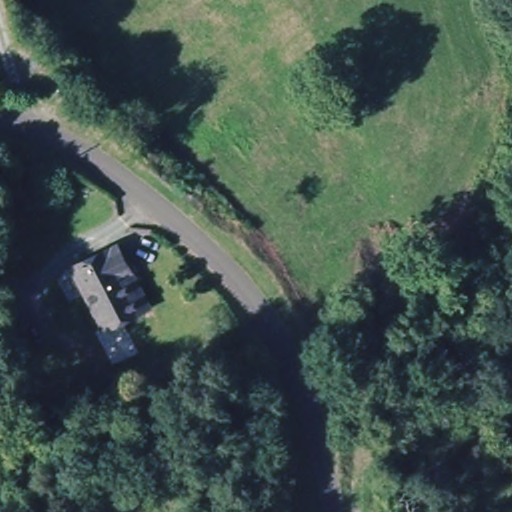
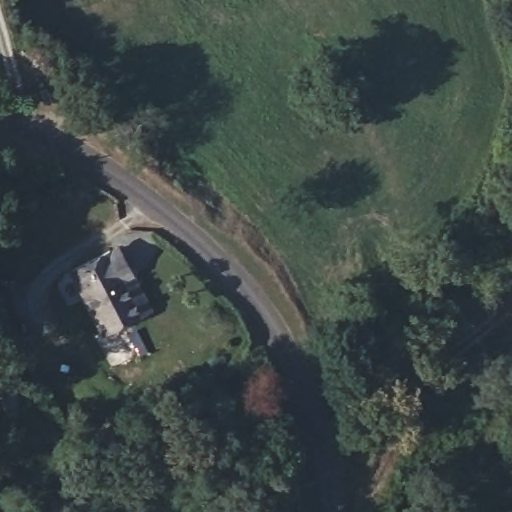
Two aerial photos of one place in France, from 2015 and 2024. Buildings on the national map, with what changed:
unchanged [(69,266),(106,249),(114,244),(146,311),(136,315),(100,332),(69,266)]

